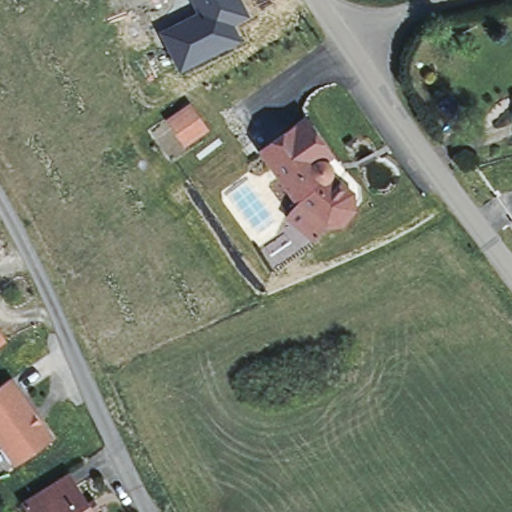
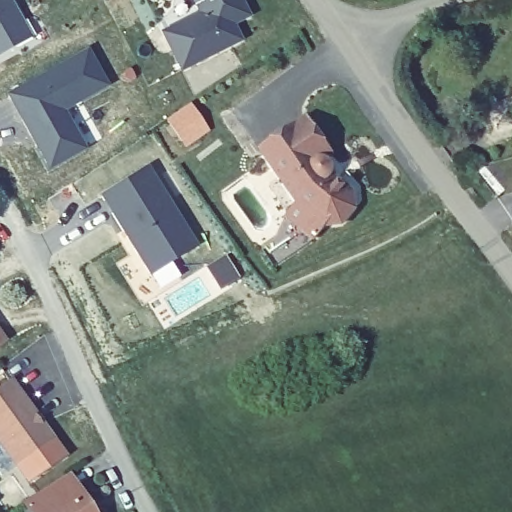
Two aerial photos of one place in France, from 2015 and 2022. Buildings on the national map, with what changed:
new [(0,56),(0,0),(9,0),(31,39),(0,56)]
new [(252,17),(235,26),(244,42),(179,74),(160,33),(197,15),(190,0),(243,0),(252,17)]
new [(90,48),(111,86),(67,110),(87,149),(50,170),(10,94),(90,48)]
unchanged [(187,143),(184,139),(170,120),(187,108),(200,127),(204,131),(187,143)]
unchanged [(307,118),(334,156),(325,163),(332,166),(334,176),(354,193),(356,210),(345,223),(325,226),(299,202),(262,149),(307,118)]
new [(198,247),(149,277),(97,196),(148,165),(198,247)]
unchanged [(0,345),(0,336),(4,342),(0,345)]
unchanged [(54,441),(19,466),(0,439),(0,390),(12,382),(54,441)]
unchanged [(44,492),(69,474),(77,487),(94,512),(31,512),(26,504),(44,492)]

